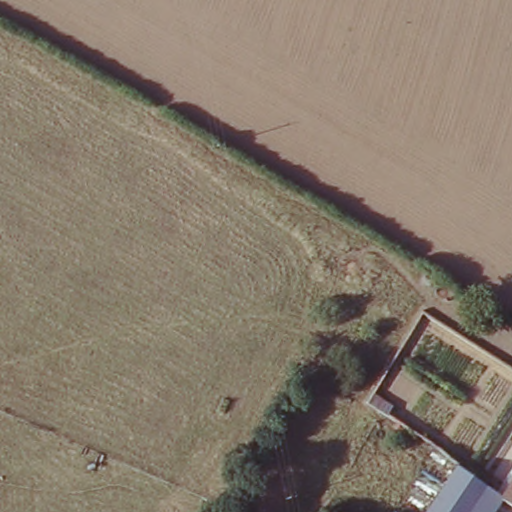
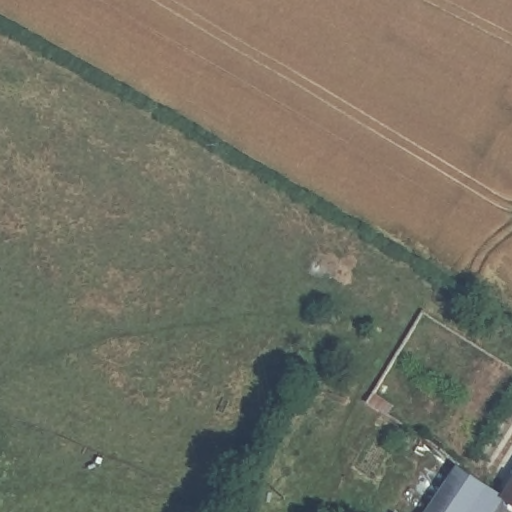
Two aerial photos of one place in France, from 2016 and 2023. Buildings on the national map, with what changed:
unchanged [(423,512),(452,468),(485,491),(470,512),(423,512)]
unchanged [(497,499),(512,477),(512,509),(501,502),(497,499)]
unchanged [(470,512),(485,491),(497,499),(501,502),(494,512),(470,512)]

